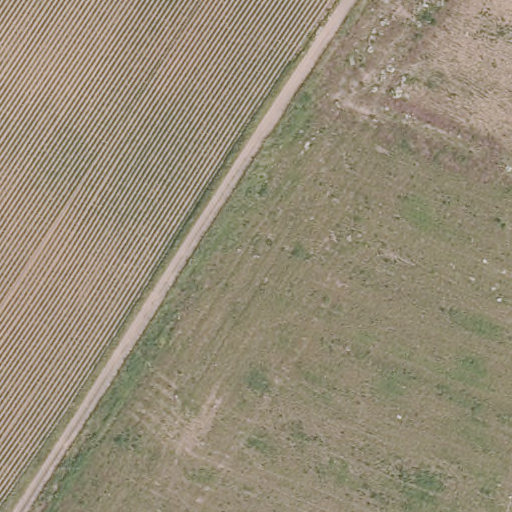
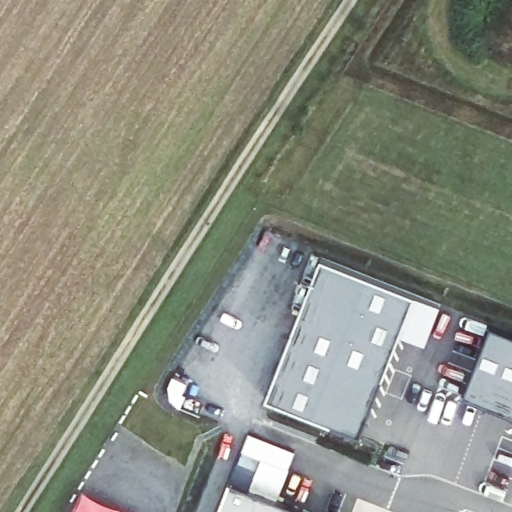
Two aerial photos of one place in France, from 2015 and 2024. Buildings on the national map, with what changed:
new [(318,262),(414,299),(359,440),(264,403),(318,262)]
new [(399,337),(414,299),(437,308),(423,346),(399,337)]
new [(485,333),(512,344),(512,427),(457,405),(485,333)]
unchanged [(297,446),(279,495),(323,512),(217,512),(250,429),(297,446)]

